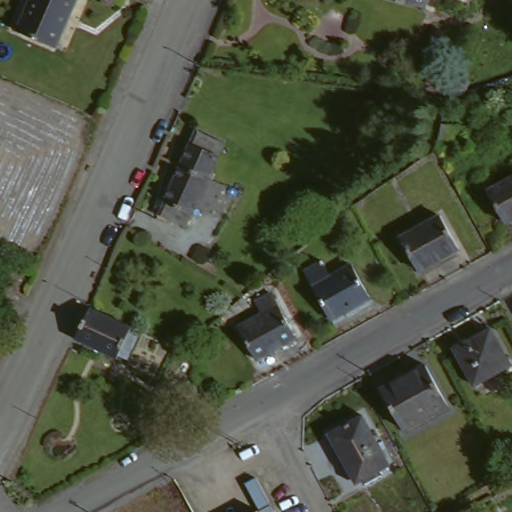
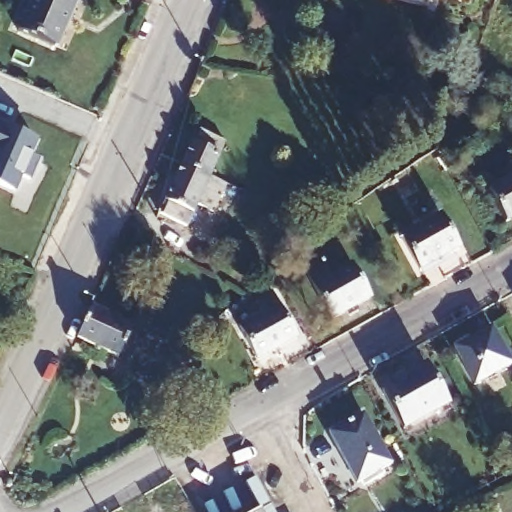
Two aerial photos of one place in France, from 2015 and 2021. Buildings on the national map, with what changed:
unchanged [(16,29),(28,0),(83,0),(62,49),(16,29)]
unchanged [(426,0),(448,0),(445,6),(426,0)]
new [(9,119),(5,127),(10,129),(12,126),(36,138),(27,155),(42,162),(34,179),(20,171),(11,189),(0,183),(0,115),(9,119)]
unchanged [(231,140),(215,173),(188,160),(205,129),(231,140)]
unchanged [(215,173),(190,225),(160,209),(188,160),(215,173)]
unchanged [(512,209),(508,211),(490,180),(512,169),(512,209)]
unchanged [(435,215),(453,247),(416,266),(398,234),(435,215)]
unchanged [(352,265),(370,295),(332,315),(308,271),(325,262),(333,275),(352,265)]
unchanged [(272,289),(295,329),(255,350),(240,322),(262,310),(254,297),(272,289)]
unchanged [(140,323),(120,353),(84,332),(101,299),(140,323)]
unchanged [(512,357),(512,364),(477,382),(457,347),(495,326),(512,357)]
unchanged [(420,362),(444,401),(400,425),(378,386),(420,362)]
unchanged [(363,412),(385,449),(355,465),(333,428),(363,412)]
unchanged [(265,512),(236,512),(259,501),(265,512)]

